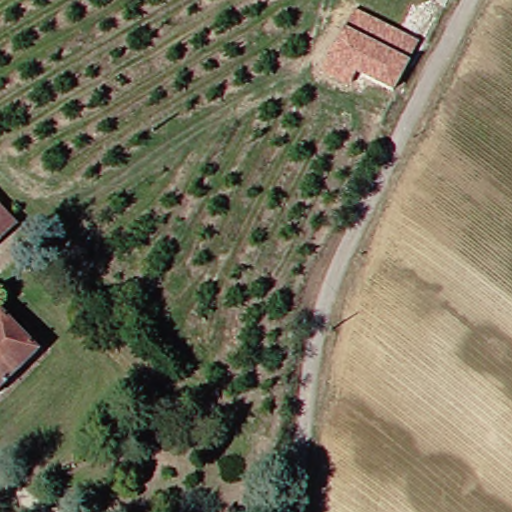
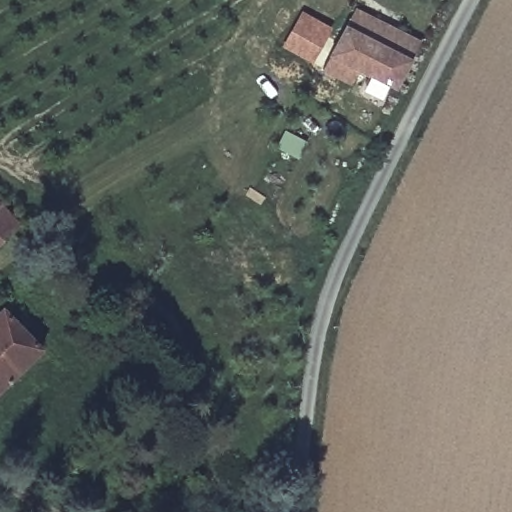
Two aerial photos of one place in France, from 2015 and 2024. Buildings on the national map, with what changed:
new [(282,46),(302,11),(331,29),(312,64),(282,46)]
unchanged [(360,12),(417,46),(407,61),(350,29),(360,12)]
unchanged [(338,77),(324,70),(350,29),(407,61),(413,65),(396,95),(364,77),(357,89),(338,77)]
unchanged [(0,245),(0,202),(21,223),(0,245)]
unchanged [(0,313),(3,310),(45,350),(0,399),(0,313)]

